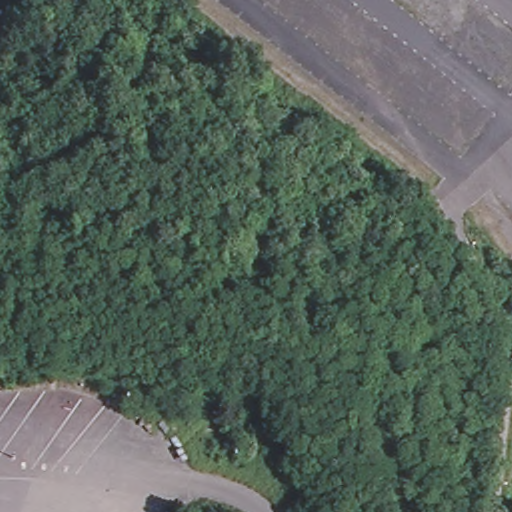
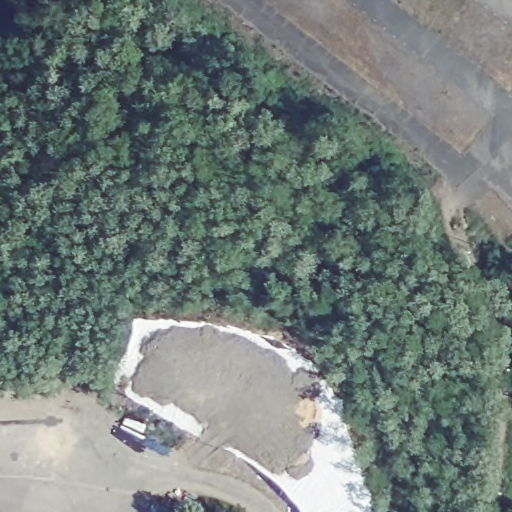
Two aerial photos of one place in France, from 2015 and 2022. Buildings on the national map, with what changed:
[]

